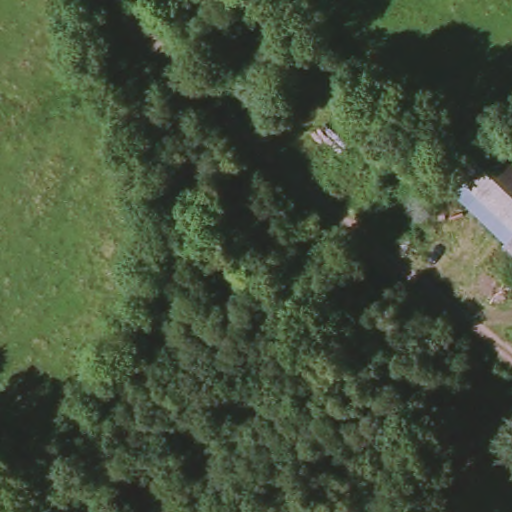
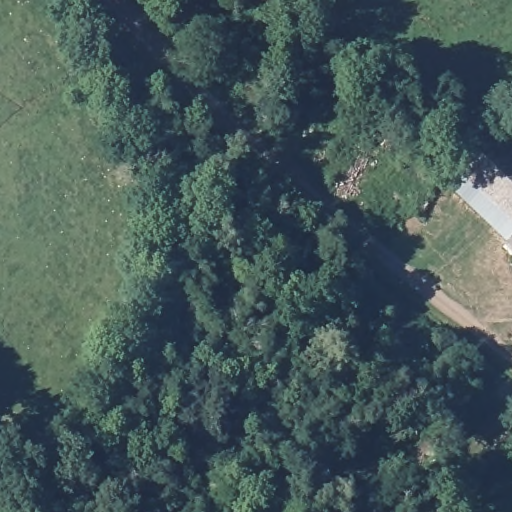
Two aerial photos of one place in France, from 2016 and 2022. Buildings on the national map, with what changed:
unchanged [(512,242),(455,189),(497,140),(512,153),(512,242)]
unchanged [(512,245),(512,248),(511,248),(512,245)]

